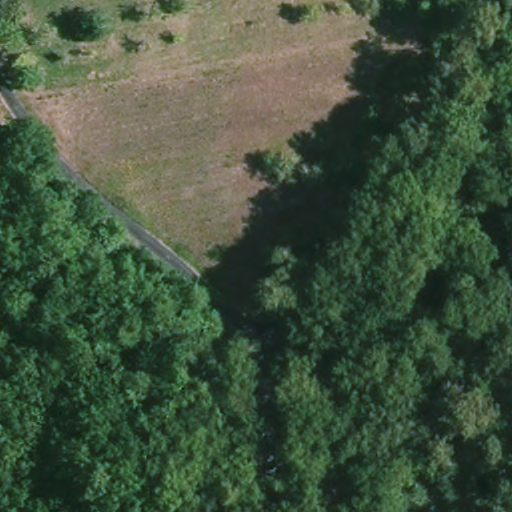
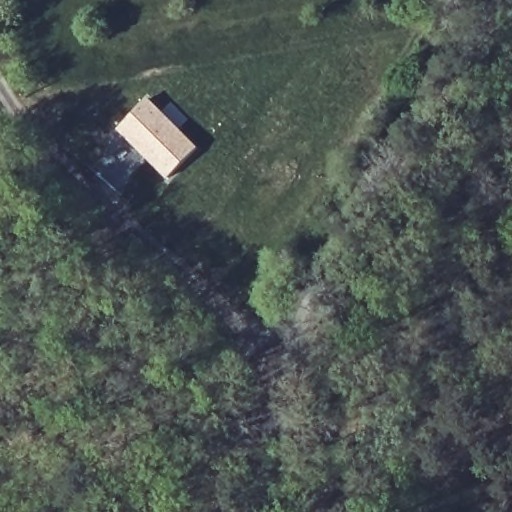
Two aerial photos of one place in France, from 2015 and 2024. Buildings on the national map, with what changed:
new [(150,99),(198,147),(169,177),(119,129),(150,99)]

